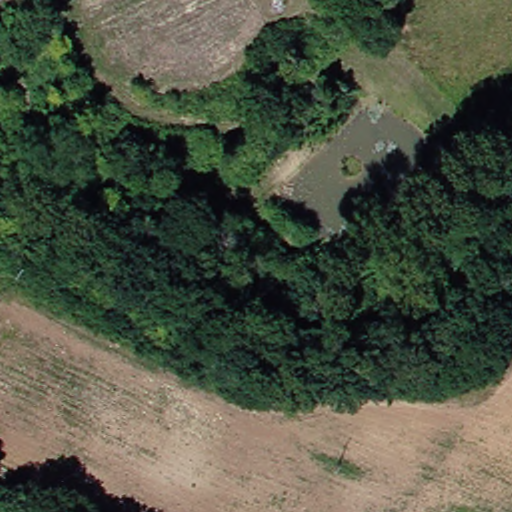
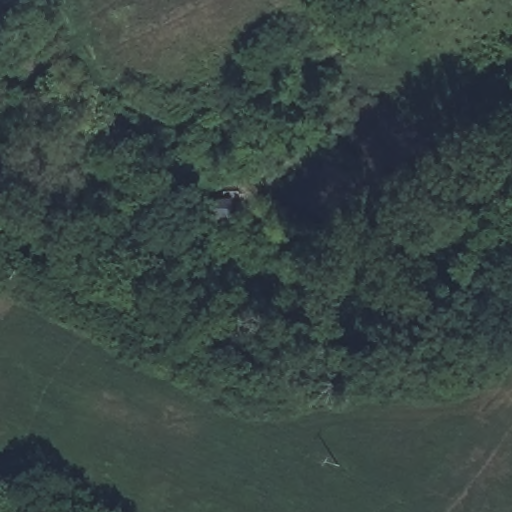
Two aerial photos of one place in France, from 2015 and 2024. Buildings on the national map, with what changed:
[]

